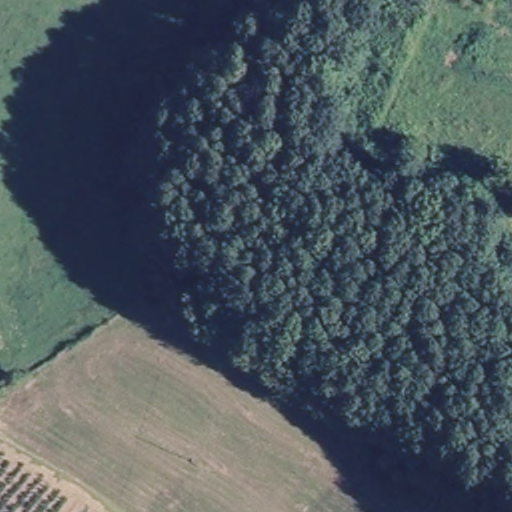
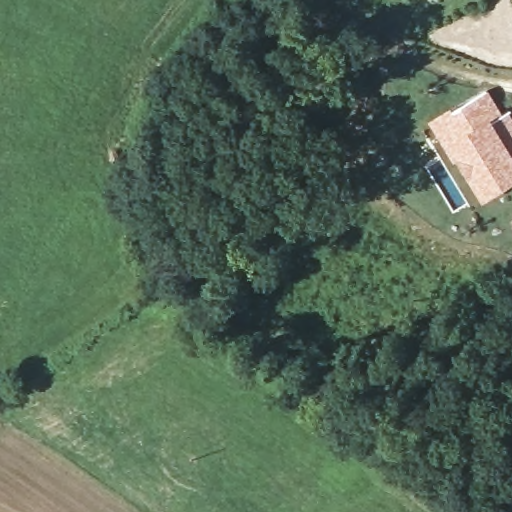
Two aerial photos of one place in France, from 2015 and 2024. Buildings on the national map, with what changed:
new [(489,91),(504,114),(510,111),(512,114),(512,185),(483,202),(430,123),(489,91)]

